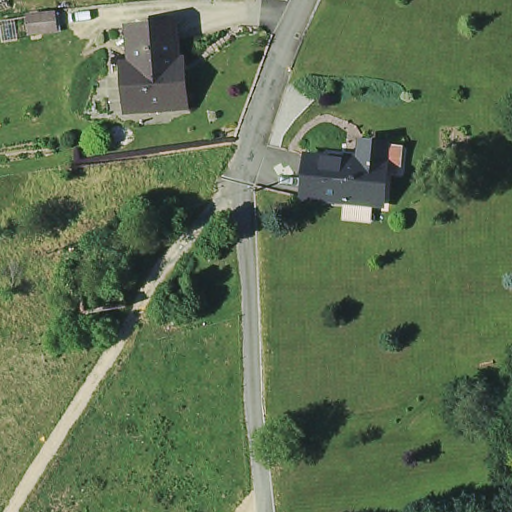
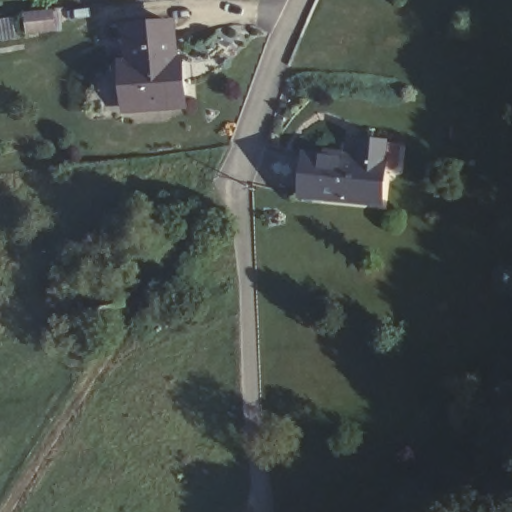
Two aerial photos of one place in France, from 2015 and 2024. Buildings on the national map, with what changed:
unchanged [(170,101),(121,105),(118,60),(125,60),(123,23),(167,20),(169,55),(176,55),(179,100),(170,101)]
unchanged [(291,193),(295,151),(346,156),(348,137),(374,139),(389,141),(388,161),(384,166),(372,165),(369,200),(291,193)]

